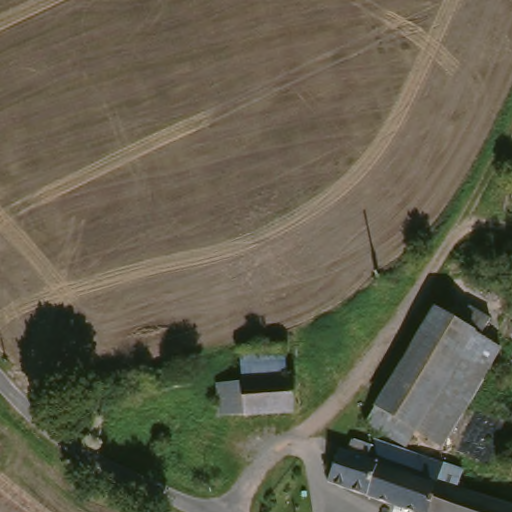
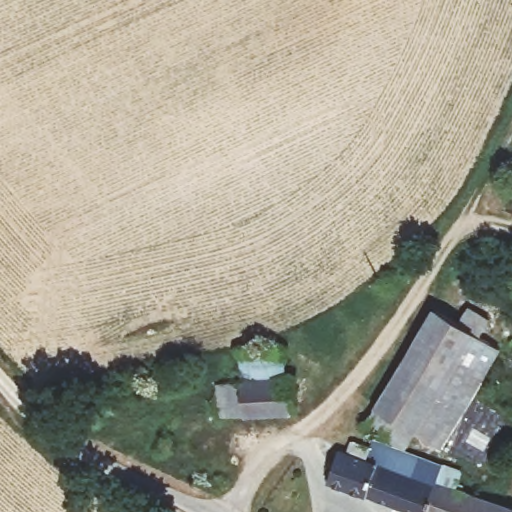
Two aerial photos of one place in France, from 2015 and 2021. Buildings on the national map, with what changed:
unchanged [(456,324),(466,307),(487,318),(479,336),(503,352),(443,448),(415,430),(405,451),(463,472),(457,492),(348,455),(353,441),(371,448),(379,436),(363,427),(432,310),(456,324)]
unchanged [(225,382),(243,381),(242,364),(266,361),(285,360),(287,378),(291,378),(295,415),(247,420),(227,421),(225,382)]
unchanged [(191,387),(156,395),(154,381),(188,373),(191,387)]
unchanged [(337,451),(348,455),(457,492),(512,509),(512,512),(406,512),(323,483),(337,451)]

